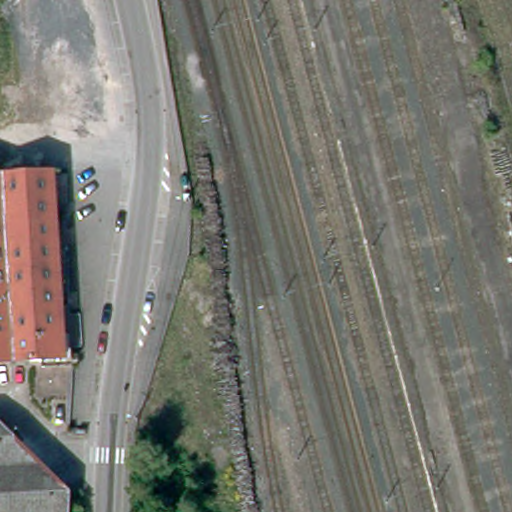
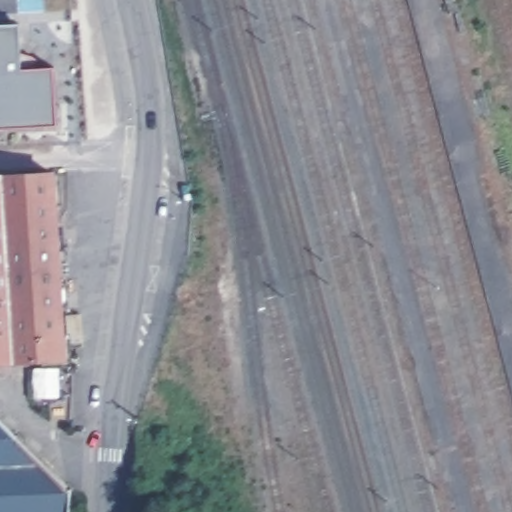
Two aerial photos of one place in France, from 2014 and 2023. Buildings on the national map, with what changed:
new [(53,67),(57,125),(0,129),(0,25),(18,24),(21,70),(53,67)]
unchanged [(0,174),(54,171),(62,330),(63,356),(0,359),(0,174)]
unchanged [(70,512),(0,512),(0,420),(72,488),(70,512)]

